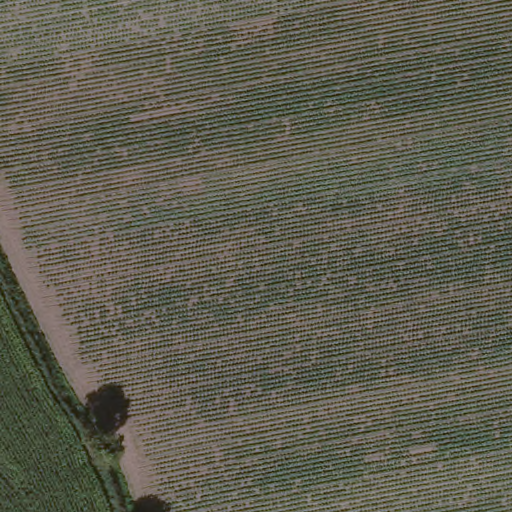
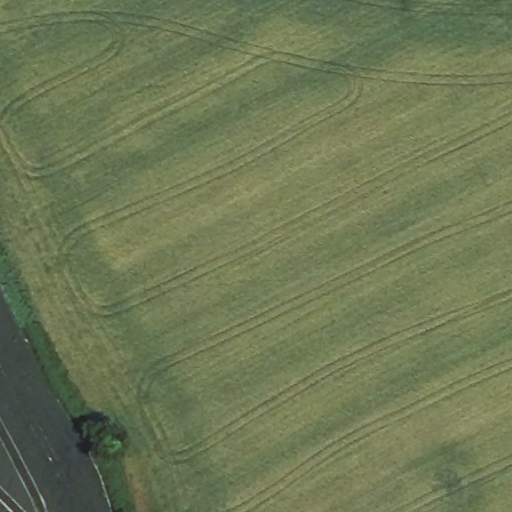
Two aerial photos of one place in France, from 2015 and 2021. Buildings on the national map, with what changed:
[]

